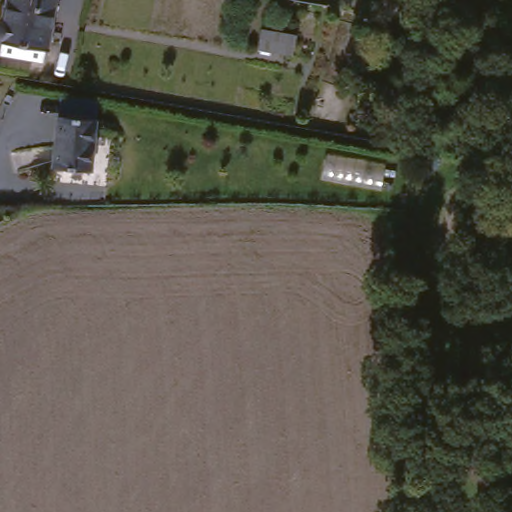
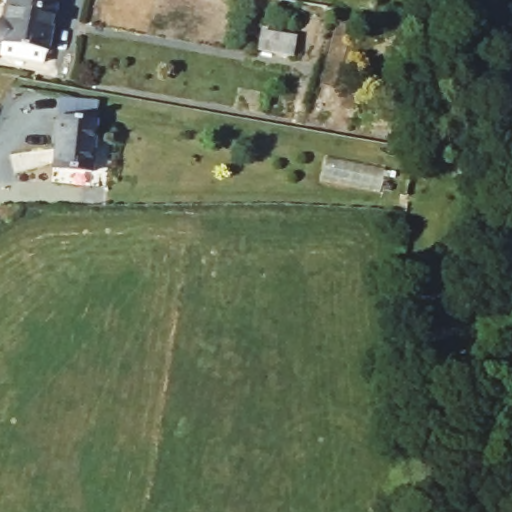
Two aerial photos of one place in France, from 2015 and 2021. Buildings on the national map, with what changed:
unchanged [(0,43),(0,23),(2,21),(3,19),(6,0),(56,0),(47,50),(0,43)]
unchanged [(257,35),(292,41),(288,61),(254,54),(257,35)]
unchanged [(49,168),(54,116),(92,120),(87,172),(49,168)]
unchanged [(464,164),(490,167),(487,186),(461,182),(464,164)]

